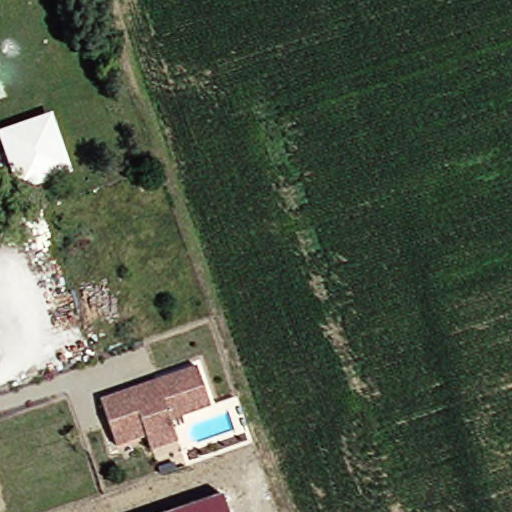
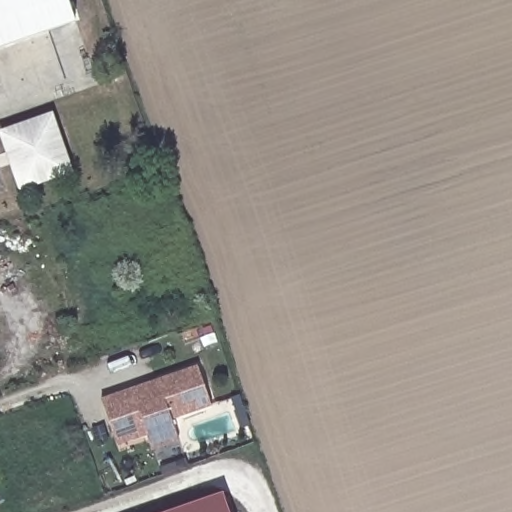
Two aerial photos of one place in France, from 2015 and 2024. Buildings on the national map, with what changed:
new [(0,50),(0,0),(68,0),(77,25),(0,50)]
unchanged [(56,118),(73,170),(26,185),(9,133),(56,118)]
unchanged [(155,446),(150,431),(120,441),(105,395),(136,385),(161,376),(202,363),(215,402),(175,416),(177,422),(182,437),(155,446)]
new [(222,494),(229,512),(170,512),(222,494)]
unchanged [(3,507),(0,508),(0,498),(3,507)]

